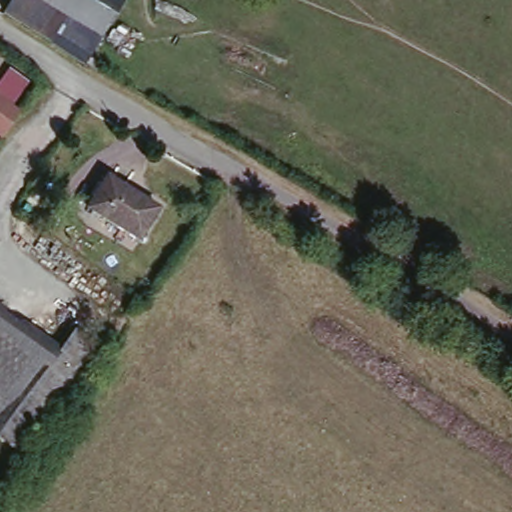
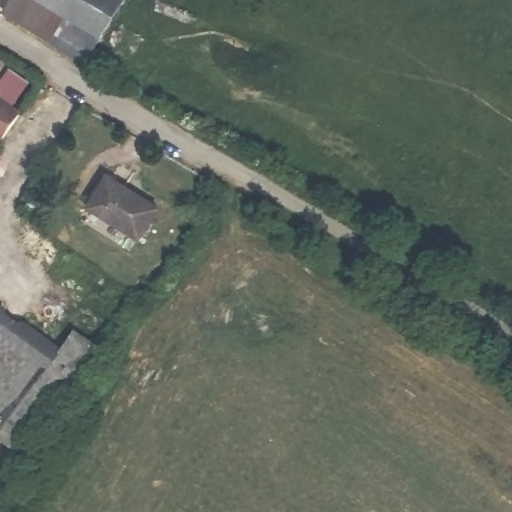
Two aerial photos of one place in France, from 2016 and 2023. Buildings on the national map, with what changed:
unchanged [(87,62),(10,14),(18,0),(126,0),(87,62)]
unchanged [(17,113),(0,138),(0,101),(17,113)]
unchanged [(107,177),(160,208),(141,240),(87,209),(107,177)]
unchanged [(14,423),(0,413),(0,298),(66,345),(52,367),(14,423)]
unchanged [(76,384),(52,367),(66,345),(81,324),(105,341),(76,384)]
unchanged [(37,440),(14,423),(52,367),(76,384),(37,440)]

